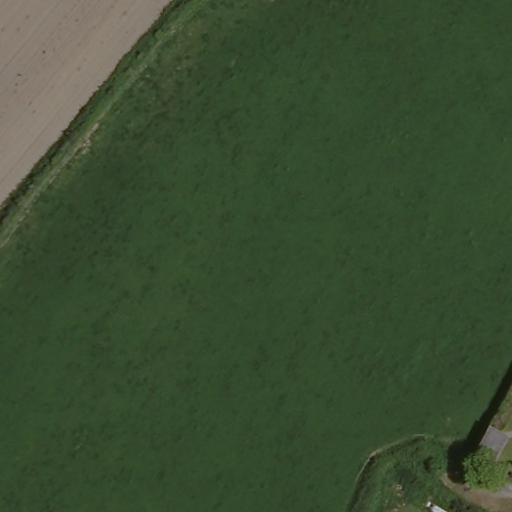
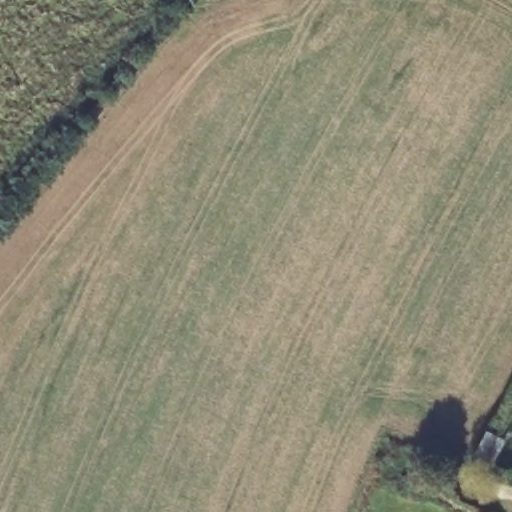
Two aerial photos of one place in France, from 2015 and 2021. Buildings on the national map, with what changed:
unchanged [(486,427),(506,438),(492,465),(491,466),(470,456),(486,427)]

